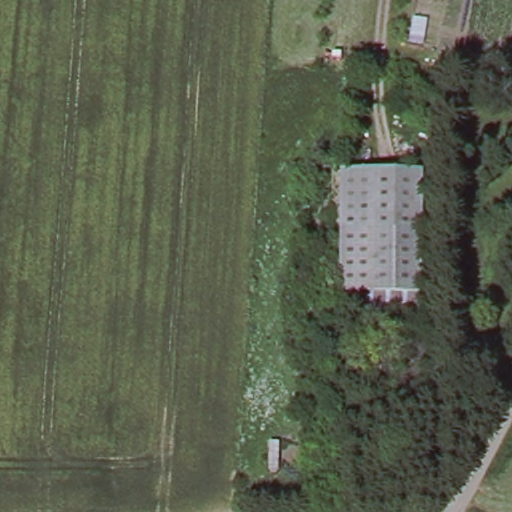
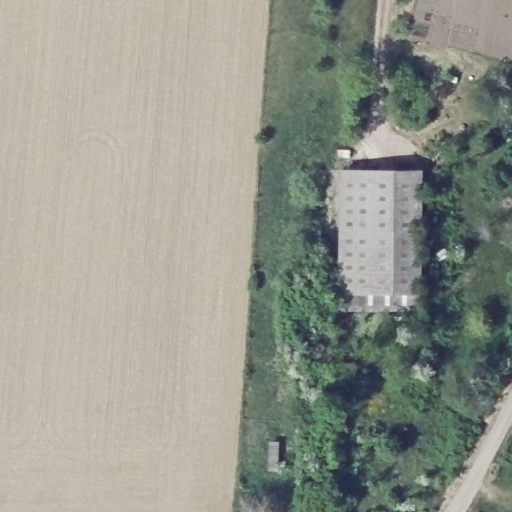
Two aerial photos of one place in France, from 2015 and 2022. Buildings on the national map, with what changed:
unchanged [(423,165),(422,287),(342,286),(342,165),(423,165)]

